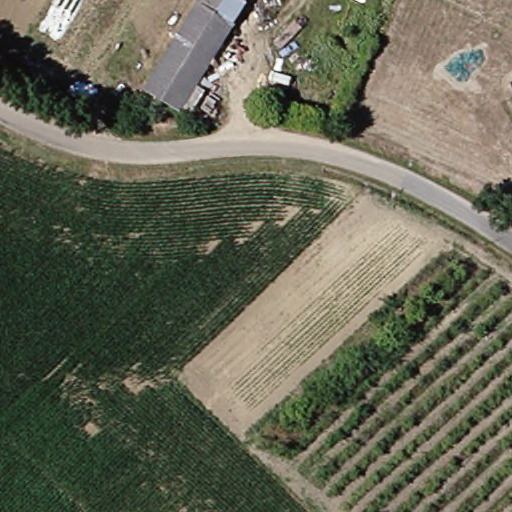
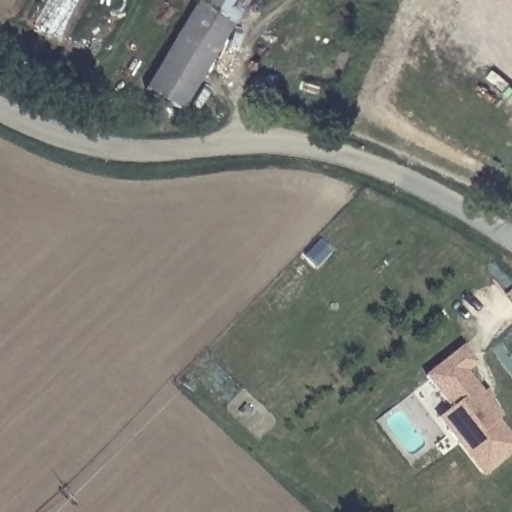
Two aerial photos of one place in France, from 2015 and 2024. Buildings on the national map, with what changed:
unchanged [(224,14),(238,22),(185,110),(150,90),(204,0),(232,0),(224,14)]
new [(425,376),(461,346),(474,362),(466,370),(480,387),(482,386),(505,413),(498,418),(512,436),(512,453),(482,477),(437,418),(450,407),(425,376)]

